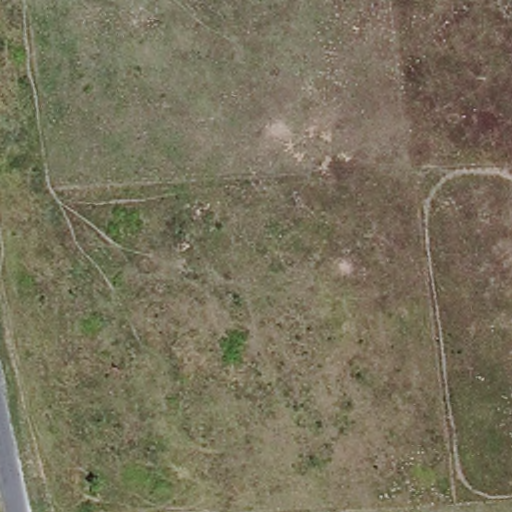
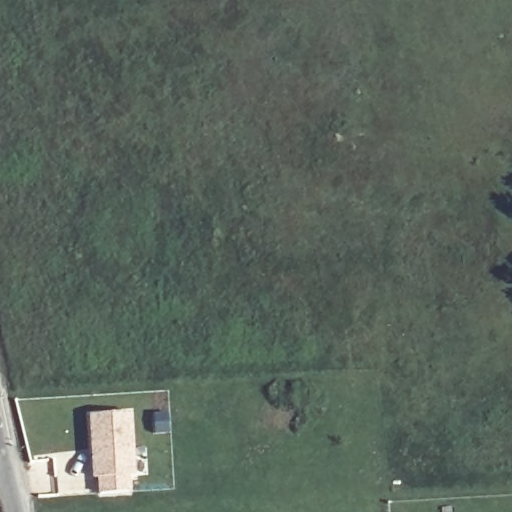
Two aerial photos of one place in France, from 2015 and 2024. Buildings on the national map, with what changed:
new [(132,411),(134,457),(132,492),(97,493),(96,478),(92,478),(87,415),(132,411)]

